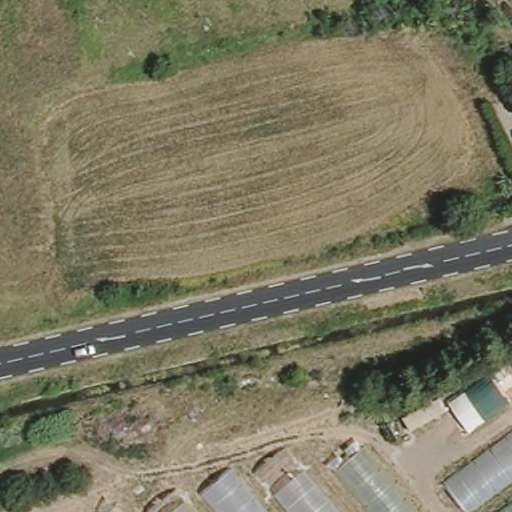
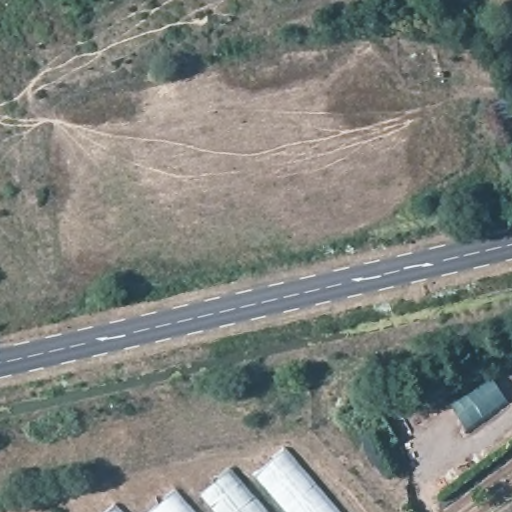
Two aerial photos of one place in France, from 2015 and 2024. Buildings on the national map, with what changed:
unchanged [(505,358),(512,355),(512,372),(505,358)]
unchanged [(508,404),(468,430),(446,403),(492,374),(508,404)]
demolished [(484,506),(477,512),(473,512),(450,475),(512,430),(512,512),(488,512),(484,506)]
demolished [(327,472),(363,445),(419,512),(362,512),(327,472)]
unchanged [(179,482),(202,505),(237,465),(257,483),(285,448),(340,512),(152,512),(179,482)]
unchanged [(115,496),(130,512),(101,512),(115,496)]

